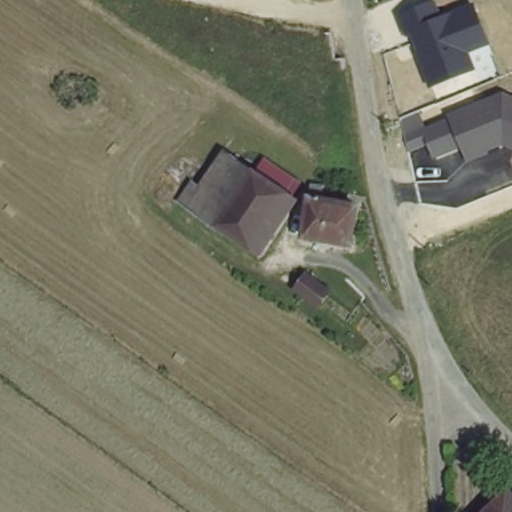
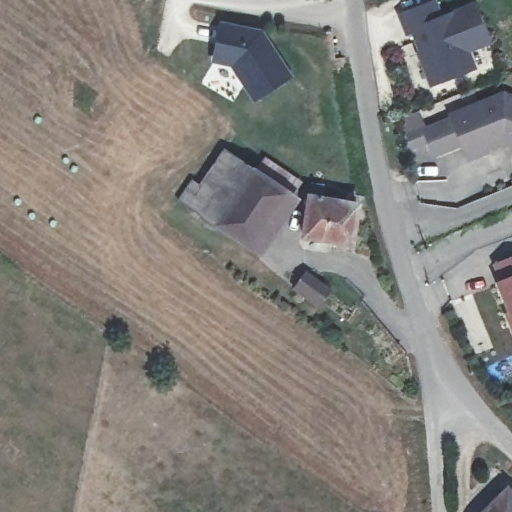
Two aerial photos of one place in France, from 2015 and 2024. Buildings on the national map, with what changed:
unchanged [(434,0),(439,15),(474,3),(489,45),(468,52),(474,71),(428,87),(408,35),(404,37),(396,15),(434,0)]
new [(251,102),(228,67),(208,63),(217,24),(261,30),(291,75),(251,102)]
unchanged [(512,96),(512,150),(500,145),(486,151),(487,154),(466,163),(459,148),(433,160),(424,144),(407,151),(399,120),(418,111),(424,127),(447,119),(446,114),(502,91),(512,96)]
unchanged [(289,222),(283,219),(260,249),(219,222),(216,229),(176,202),(188,186),(195,191),(222,155),(300,207),(289,222)]
unchanged [(349,245),(303,239),(309,198),(311,185),(324,187),(323,200),(358,205),(349,245)]
unchanged [(512,257),(512,335),(504,315),(507,313),(494,283),(499,282),(492,265),(512,257)]
unchanged [(512,487),(512,512),(472,512),(505,480),(512,487)]

